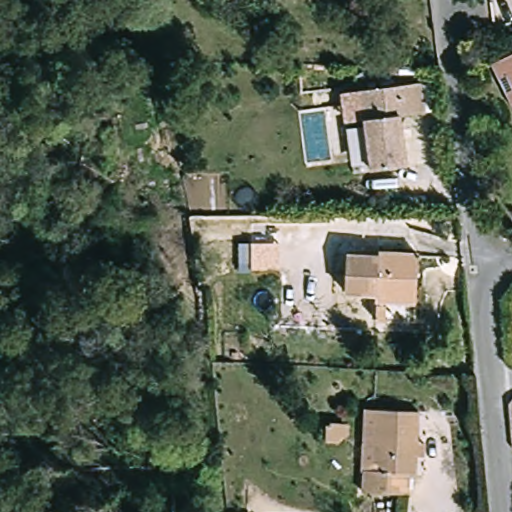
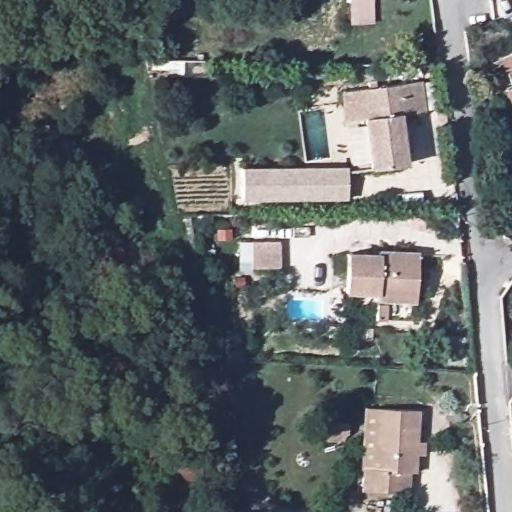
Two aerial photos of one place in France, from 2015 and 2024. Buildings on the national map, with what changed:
new [(350,23),(349,0),(371,0),(372,23),(350,23)]
unchanged [(512,49),(512,96),(493,60),(512,49)]
unchanged [(423,111),(398,115),(403,141),(407,165),(372,170),(367,142),(363,119),(358,90),(373,87),(418,81),(423,111)]
new [(347,167),(345,200),(241,201),(241,166),(347,167)]
unchanged [(375,298),(376,291),(339,291),(340,256),(377,258),(377,243),(419,247),(418,287),(417,302),(375,298)]
unchanged [(280,271),(242,270),(242,244),(280,245),(280,271)]
unchanged [(357,461),(375,462),(377,408),(419,410),(415,466),(407,466),(407,489),(357,485),(357,461)]
unchanged [(353,422),(351,444),(329,445),(332,422),(353,422)]

